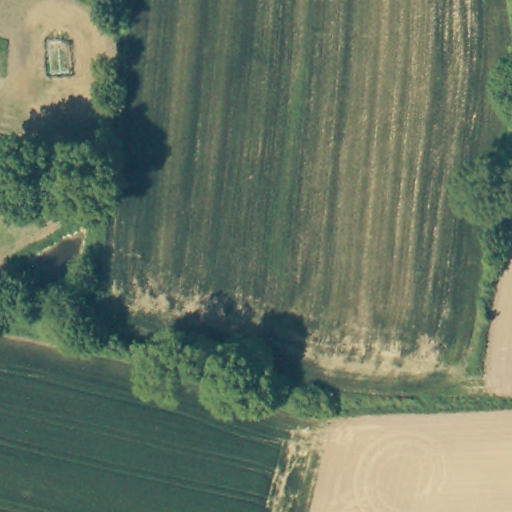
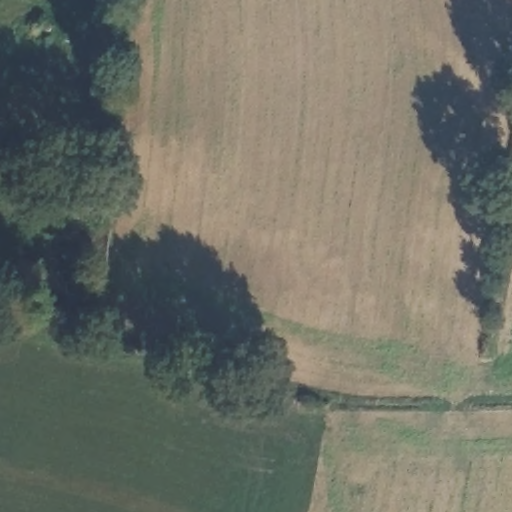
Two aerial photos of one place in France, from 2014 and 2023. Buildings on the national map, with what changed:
[]

